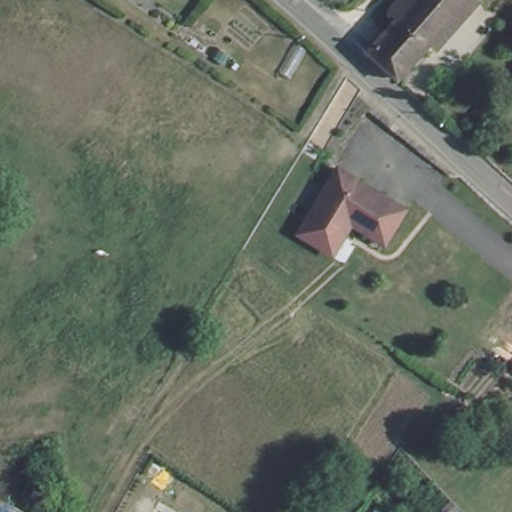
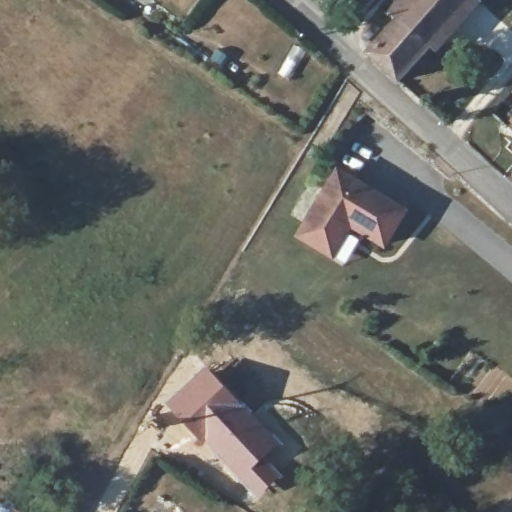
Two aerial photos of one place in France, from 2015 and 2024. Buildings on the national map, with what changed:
unchanged [(372,55),(402,19),(392,10),(399,0),(472,0),(400,81),(372,55)]
new [(510,120),(512,118),(512,121),(510,120)]
unchanged [(318,251),(293,236),(332,171),(398,211),(378,245),(345,225),(326,256),(318,251)]
new [(204,365),(253,412),(281,442),(265,457),(282,475),(256,498),(164,404),(204,365)]

